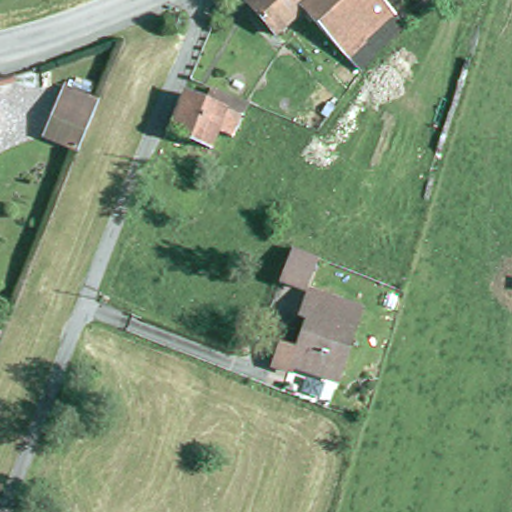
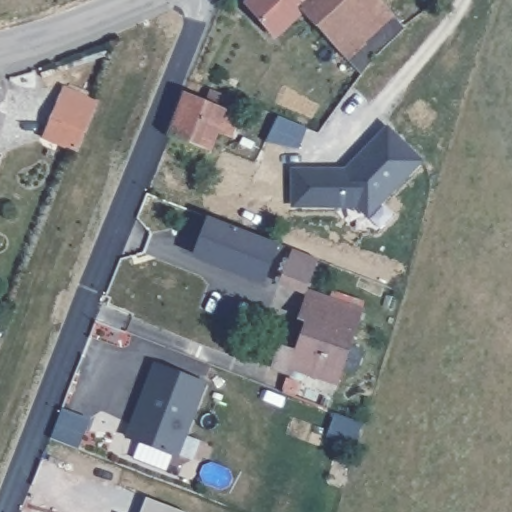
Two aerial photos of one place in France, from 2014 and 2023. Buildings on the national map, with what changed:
unchanged [(400,19),(371,47),(363,39),(346,55),(300,9),(272,32),(244,0),(384,0),(400,19)]
unchanged [(45,136),(60,102),(66,88),(100,102),(93,117),(80,151),(45,136)]
unchanged [(206,109),(212,95),(248,110),(232,147),(218,141),(211,158),(170,141),(187,100),(206,109)]
new [(308,129),(299,150),(266,143),(279,117),(308,129)]
new [(345,169),(386,125),(423,161),(370,218),(356,206),(292,209),(290,169),(345,169)]
new [(265,279),(196,253),(209,217),(277,244),(265,279)]
new [(303,294),(278,284),(292,249),(319,260),(306,288),(303,294)]
demolished [(359,302),(365,276),(398,289),(390,315),(359,302)]
unchanged [(296,314),(306,288),(358,308),(331,379),(288,362),(305,318),(296,314)]
new [(180,459),(125,437),(155,363),(207,383),(180,459)]
new [(90,419),(80,448),(51,438),(63,409),(90,419)]
new [(140,512),(146,498),(185,512),(140,512)]

